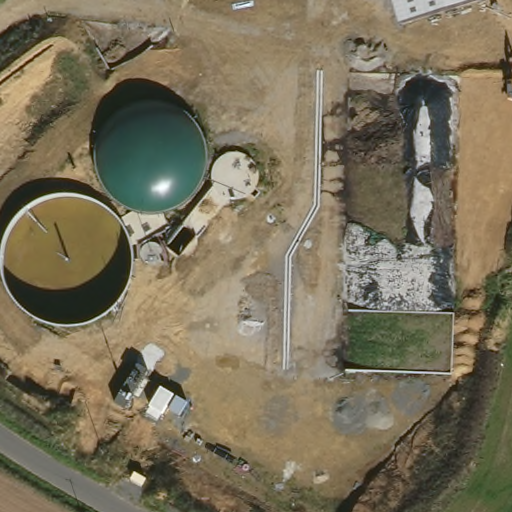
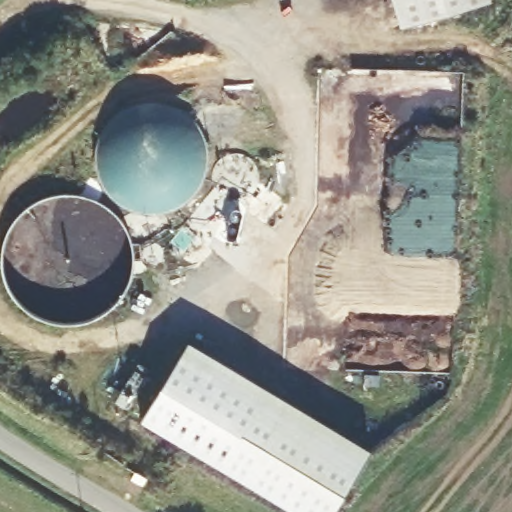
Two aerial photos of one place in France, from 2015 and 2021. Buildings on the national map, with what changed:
unchanged [(392,0),(480,0),(399,24),(392,0)]
new [(202,376),(176,361),(190,338),(372,449),(334,512),(302,512),(169,430),(202,376)]
new [(141,359),(151,366),(128,405),(118,398),(141,359)]
new [(176,361),(202,376),(169,430),(144,415),(176,361)]

